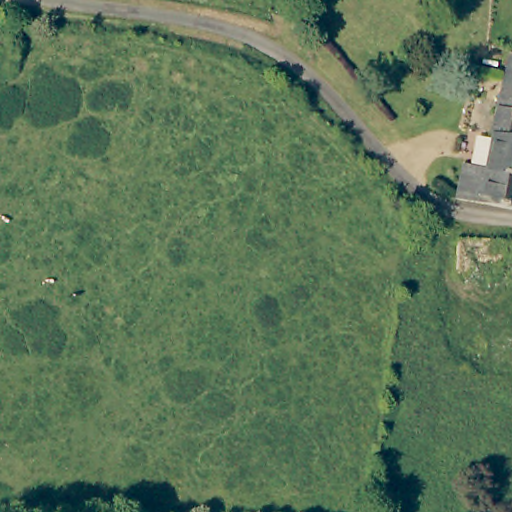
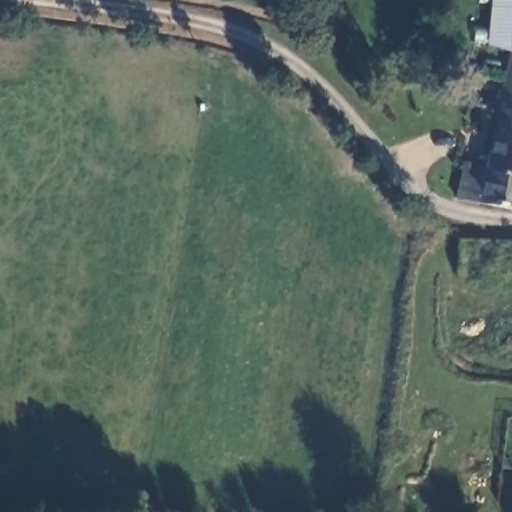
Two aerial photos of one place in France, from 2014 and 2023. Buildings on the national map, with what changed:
new [(510,53),(487,46),(490,0),(512,0),(512,46),(510,53)]
unchanged [(452,192),(461,160),(482,163),(512,46),(512,205),(452,192)]

